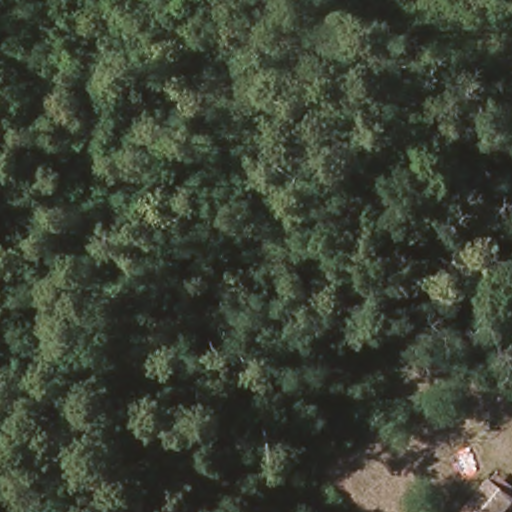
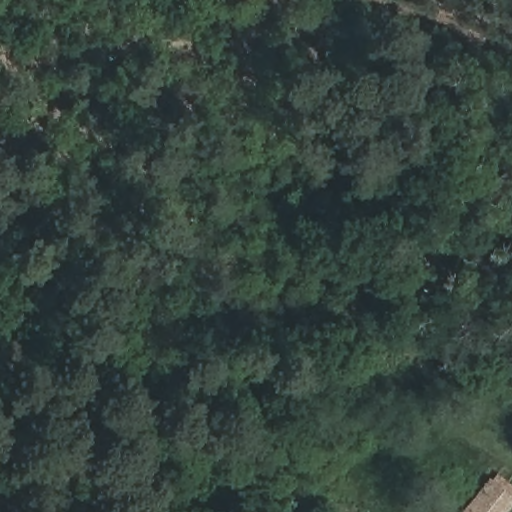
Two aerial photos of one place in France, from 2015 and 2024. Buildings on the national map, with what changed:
unchanged [(491,481),(512,498),(512,509),(509,512),(467,512),(479,497),(491,481)]

